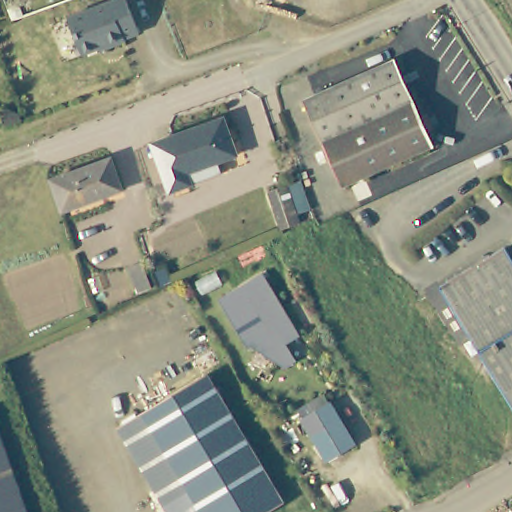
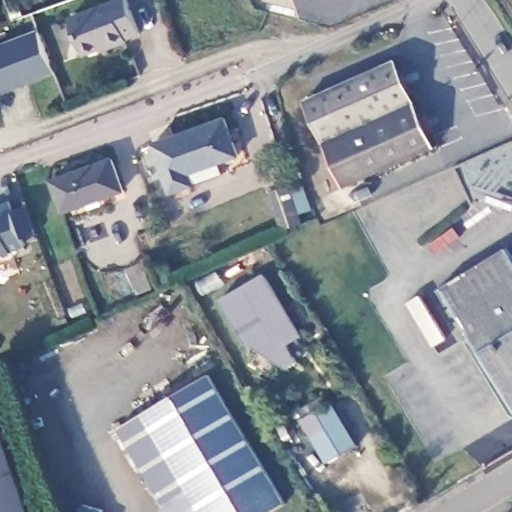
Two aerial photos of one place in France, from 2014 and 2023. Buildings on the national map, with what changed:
unchanged [(125,41),(81,57),(67,18),(117,0),(125,0),(137,35),(124,39),(125,41)]
new [(51,74),(0,94),(0,44),(35,31),(51,74)]
unchanged [(394,57),(434,144),(346,185),(306,98),(394,57)]
unchanged [(191,181),(171,190),(152,142),(224,114),(239,150),(217,159),(221,168),(191,181)]
unchanged [(110,155),(123,186),(62,211),(49,180),(110,155)]
unchanged [(314,227),(292,237),(279,206),(300,196),(314,227)]
new [(36,233),(21,237),(24,247),(10,252),(0,257),(0,205),(9,202),(12,209),(26,204),(36,233)]
unchanged [(505,247),(510,256),(512,255),(512,400),(443,285),(505,247)]
unchanged [(298,332),(279,343),(289,359),(280,366),(254,342),(249,345),(219,297),(261,273),(298,332)]
unchanged [(282,510),(278,512),(164,512),(117,430),(208,378),(282,510)]
unchanged [(356,449),(326,466),(304,427),(335,410),(356,449)]
unchanged [(30,512),(0,512),(0,429),(30,512)]

